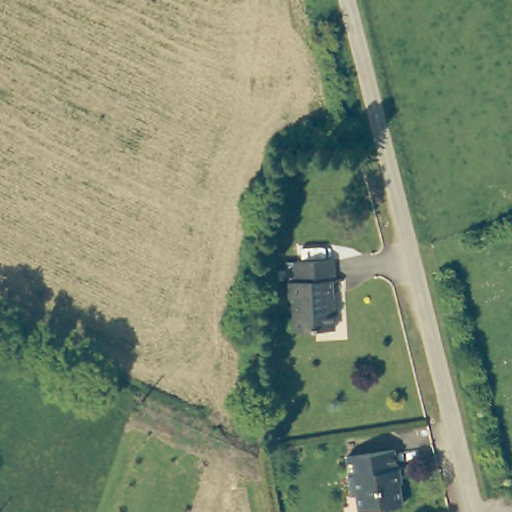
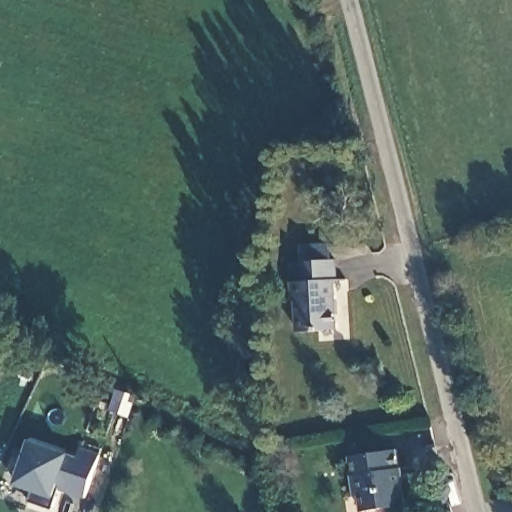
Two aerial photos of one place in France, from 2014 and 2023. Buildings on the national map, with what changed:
unchanged [(296,332),(296,302),(290,302),(290,283),(296,283),(295,262),(334,262),(335,332),(296,332)]
new [(29,501),(32,491),(15,485),(29,440),(69,454),(78,457),(82,448),(100,455),(84,499),(56,490),(54,498),(51,507),(29,501)]
unchanged [(399,510),(382,512),(356,512),(355,506),(349,507),(346,477),(349,476),(347,456),(393,451),(399,510)]

